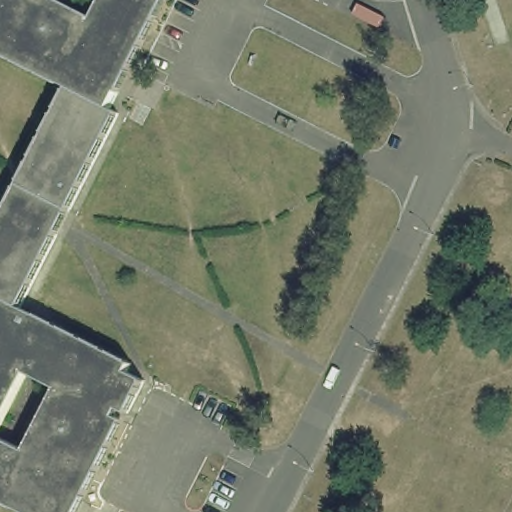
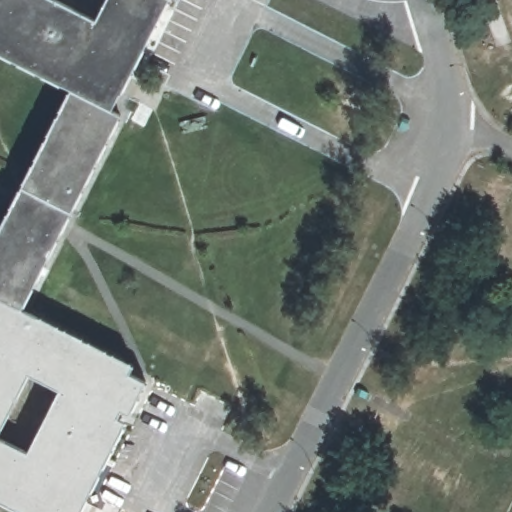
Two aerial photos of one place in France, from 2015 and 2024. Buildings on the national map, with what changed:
unchanged [(0,224),(72,86),(0,51),(0,0),(169,0),(112,107),(120,113),(24,306),(135,360),(130,370),(147,381),(79,512),(26,512),(0,499),(0,224)]

